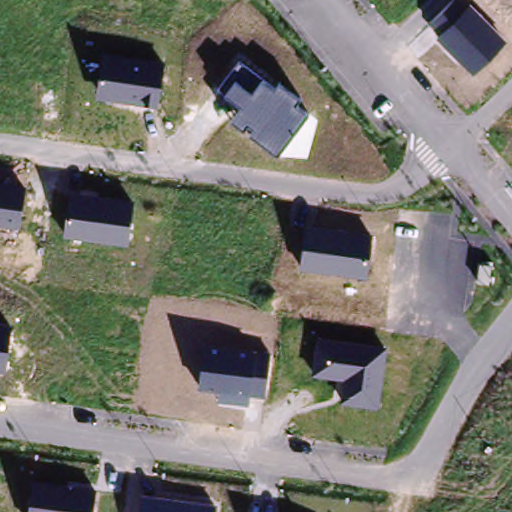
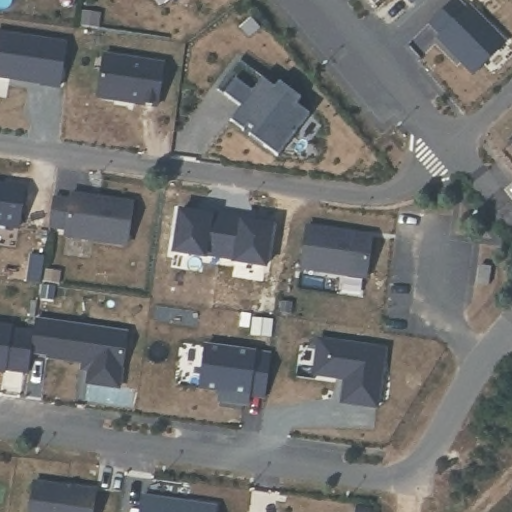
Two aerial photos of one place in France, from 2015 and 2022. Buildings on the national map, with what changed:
new [(414,1),(412,0),(415,0),(414,1)]
unchanged [(474,76),(437,39),(441,36),(429,24),(453,0),(461,0),(468,7),(470,5),(507,42),(474,76)]
new [(58,84),(40,81),(40,80),(0,74),(0,32),(63,41),(58,84)]
unchanged [(158,108),(98,99),(105,53),(164,62),(158,108)]
unchanged [(277,155),(229,120),(241,105),(218,89),(239,63),(276,88),(279,84),(299,98),(296,105),(309,114),(277,155)]
unchanged [(0,226),(0,183),(25,187),(19,229),(0,226)]
unchanged [(128,246),(64,237),(71,194),(133,203),(128,246)]
new [(222,220),(223,217),(254,222),(254,225),(284,229),(278,270),(248,266),(248,263),(216,258),(216,261),(186,256),(192,215),(222,220)]
unchanged [(301,270),(307,226),(373,235),(368,280),(301,270)]
new [(33,320),(124,332),(117,386),(85,382),(89,357),(46,351),(46,349),(30,347),(33,320)]
unchanged [(0,324),(11,326),(5,373),(0,372),(0,324)]
unchanged [(341,403),(344,379),(313,375),(318,338),(386,349),(378,407),(341,403)]
unchanged [(218,402),(220,392),(199,389),(205,344),(270,354),(264,398),(251,396),(249,406),(218,402)]
unchanged [(96,489),(93,512),(31,512),(35,480),(96,489)]
unchanged [(216,506),(215,512),(140,512),(143,495),(216,506)]

